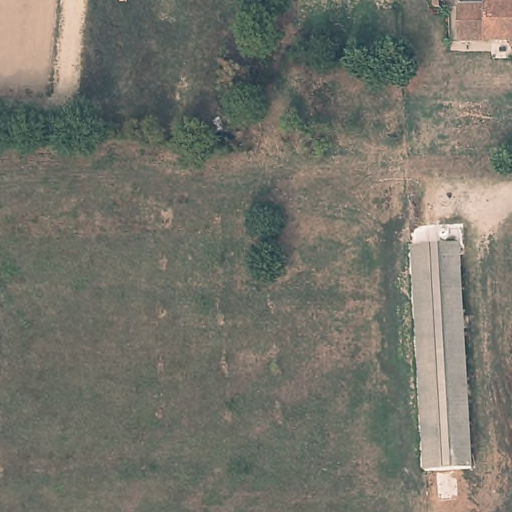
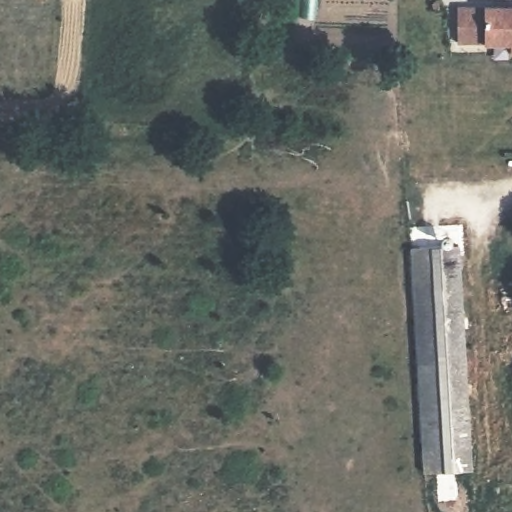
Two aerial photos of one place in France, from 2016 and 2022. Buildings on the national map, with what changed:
unchanged [(456,15),(512,5),(512,42),(462,50),(456,15)]
unchanged [(409,244),(458,243),(469,457),(470,471),(420,473),(420,457),(409,244)]

